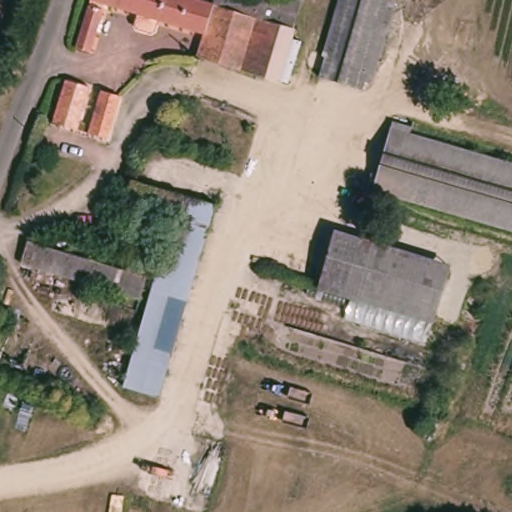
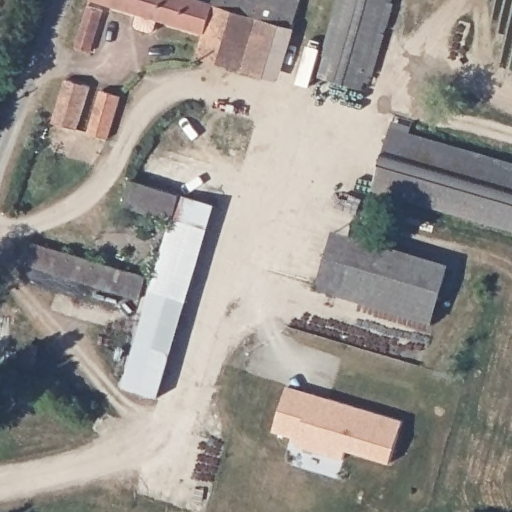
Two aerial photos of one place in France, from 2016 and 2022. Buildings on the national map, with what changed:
unchanged [(257,9),(246,49),(258,53),(254,68),(195,51),(202,26),(114,0),(293,0),(288,17),(257,9)]
unchanged [(315,83),(335,0),(386,0),(364,95),(315,83)]
unchanged [(100,6),(86,50),(70,45),(84,1),(100,6)]
unchanged [(288,17),(274,74),(254,68),(258,53),(246,49),(257,9),(288,17)]
unchanged [(104,88),(123,94),(114,125),(109,140),(50,113),(61,75),(90,84),(84,104),(90,106),(87,112),(83,111),(80,119),(94,121),(104,88)]
unchanged [(390,120),(414,125),(410,145),(512,170),(512,235),(371,198),(390,120)]
unchanged [(126,204),(134,180),(214,207),(206,232),(184,302),(147,290),(170,218),(126,204)]
unchanged [(448,266),(433,323),(314,293),(330,237),(448,266)]
unchanged [(28,243),(147,281),(141,303),(21,265),(28,243)]
unchanged [(184,302),(153,397),(117,386),(147,290),(184,302)]
new [(403,420),(391,462),(346,449),(344,458),(297,444),(300,438),(273,431),(290,386),(403,420)]

